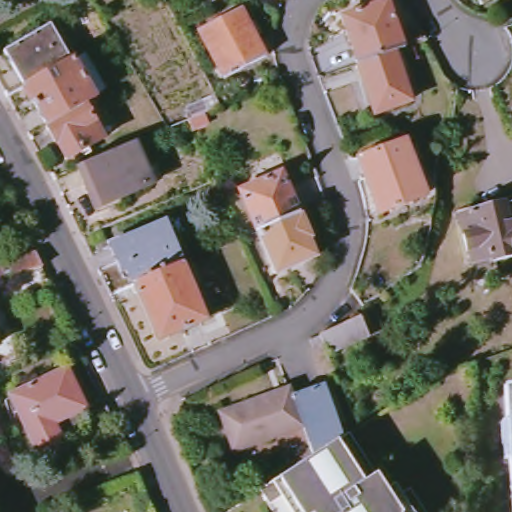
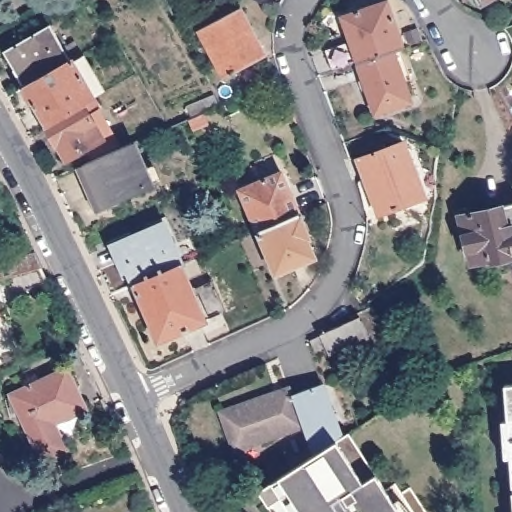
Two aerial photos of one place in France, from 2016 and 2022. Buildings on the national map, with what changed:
unchanged [(484,9),(478,0),(499,0),(484,9)]
unchanged [(394,52),(359,63),(344,18),(388,2),(404,49),(394,52)]
unchanged [(199,30),(243,9),(267,55),(226,78),(199,30)]
unchanged [(31,87),(21,69),(15,73),(4,55),(50,29),(70,64),(31,87)]
unchanged [(394,52),(413,100),(377,113),(359,63),(394,52)]
unchanged [(70,64),(72,63),(94,102),(48,130),(24,91),(31,87),(70,64)]
unchanged [(94,102),(100,112),(90,119),(104,143),(89,152),(96,165),(88,169),(80,156),(68,163),(48,130),(94,102)]
unchanged [(361,160),(406,142),(428,196),(381,215),(361,160)]
unchanged [(88,169),(96,165),(136,147),(153,189),(103,212),(85,170),(88,169)]
unchanged [(258,232),(239,192),(281,173),(299,214),(258,232)]
unchanged [(471,251),(469,251),(461,217),(512,205),(512,258),(492,262),(491,261),(474,264),(471,251)]
unchanged [(299,214),(309,237),(307,239),(315,257),(276,274),(258,232),(299,214)]
unchanged [(180,228),(205,217),(216,242),(192,253),(180,228)]
unchanged [(134,285),(115,242),(166,218),(176,241),(173,243),(182,263),(134,285)]
unchanged [(13,277),(0,280),(0,265),(36,256),(43,269),(51,287),(18,294),(13,277)]
unchanged [(182,263),(197,296),(201,294),(213,318),(161,342),(134,285),(182,263)]
unchanged [(316,353),(306,357),(300,344),(343,325),(341,321),(356,314),(365,312),(376,336),(321,361),(316,353)]
unchanged [(13,396),(68,370),(87,411),(54,426),(65,451),(43,461),(13,396)]
unchanged [(306,425),(294,396),(325,383),(346,436),(328,448),(316,455),(305,426),(306,425)]
unchanged [(512,384),(512,512),(511,512),(503,384),(512,384)]
unchanged [(294,396),(306,425),(305,426),(238,454),(224,422),(222,417),(258,402),(291,388),(294,396)]
unchanged [(328,448),(346,436),(351,433),(386,487),(397,481),(416,512),(293,512),(283,496),(269,504),(261,490),(316,455),(328,448)]

